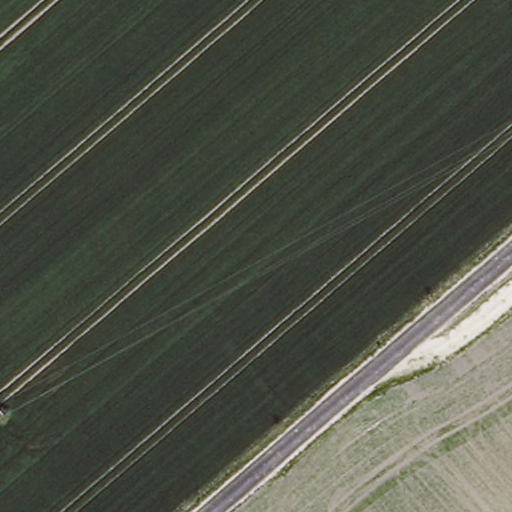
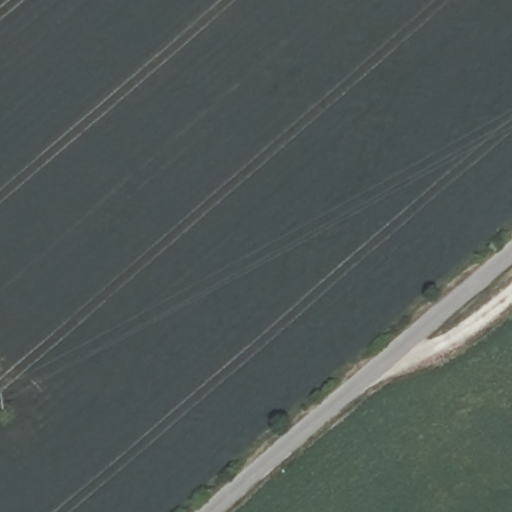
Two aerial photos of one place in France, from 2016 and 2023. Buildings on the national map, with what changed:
[]

